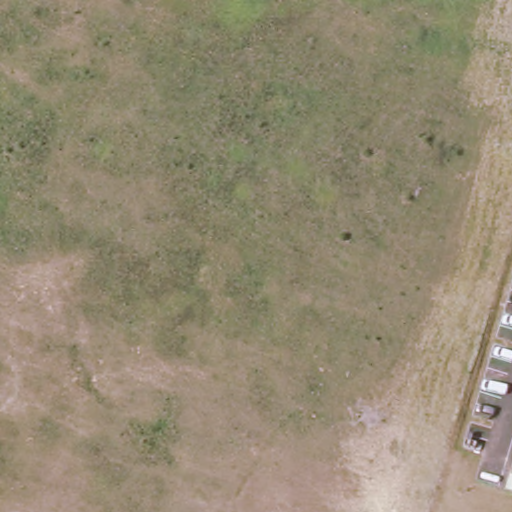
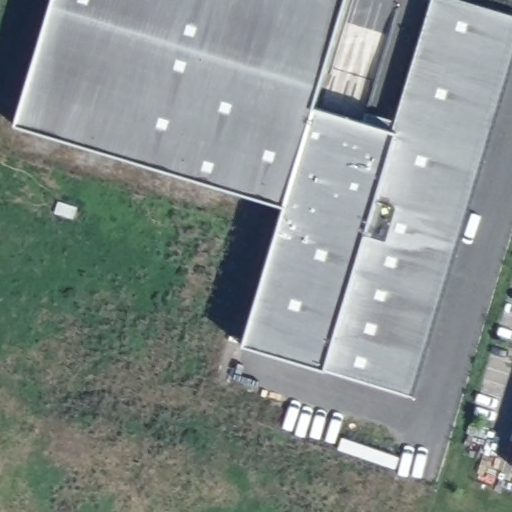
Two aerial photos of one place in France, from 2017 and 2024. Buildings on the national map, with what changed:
new [(394,129),(437,0),(512,24),(512,43),(411,389),(245,344),(283,205),(13,124),(54,0),(344,0),(316,104),(394,129)]

